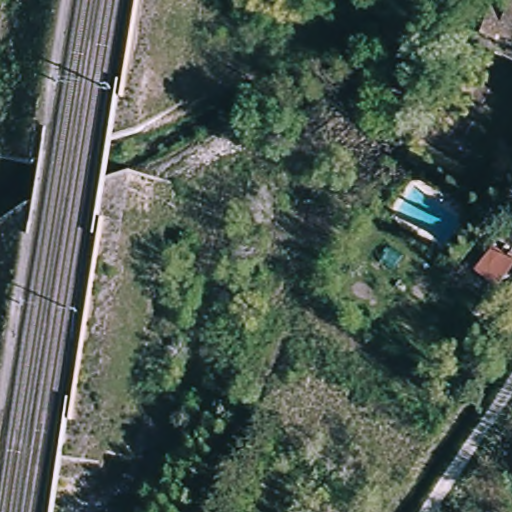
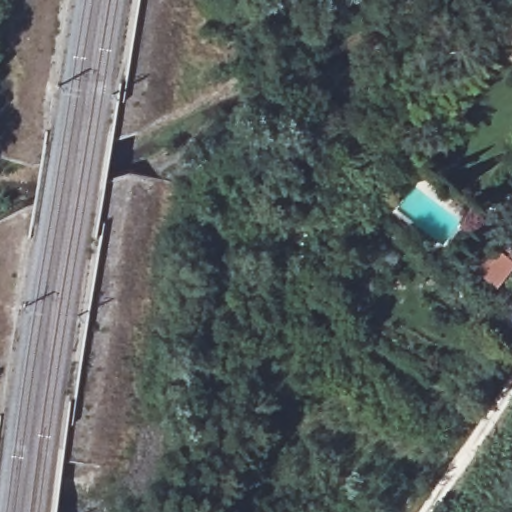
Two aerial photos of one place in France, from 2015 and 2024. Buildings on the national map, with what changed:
unchanged [(495,41),(480,35),(492,4),(502,8),(507,0),(512,0),(512,43),(496,37),(495,41)]
unchanged [(512,250),(512,290),(495,310),(462,284),(499,239),(512,250)]

